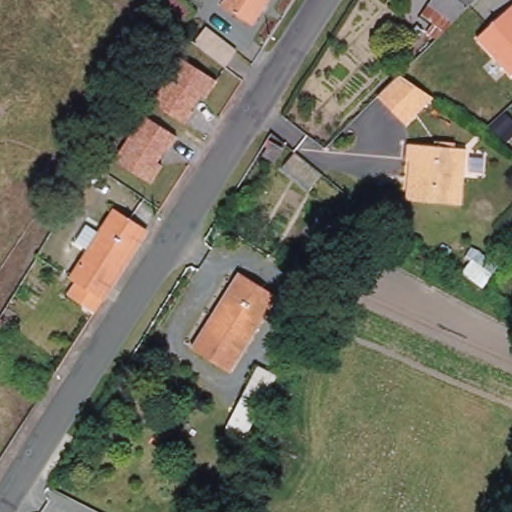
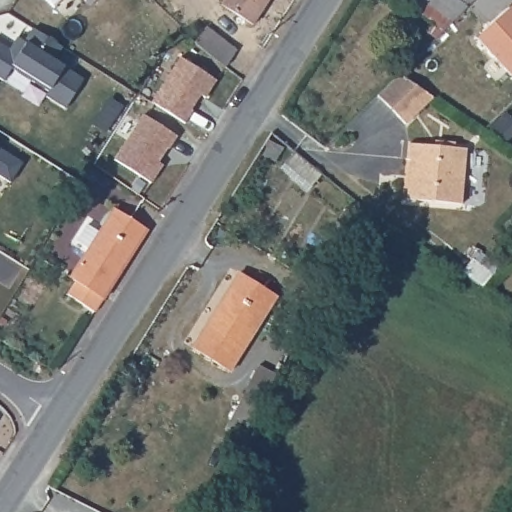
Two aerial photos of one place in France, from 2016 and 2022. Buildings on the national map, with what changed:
new [(44,0),(62,0),(53,9),(44,0)]
new [(83,0),(87,0),(85,2),(83,0)]
unchanged [(268,0),(252,25),(222,5),(225,0),(268,0)]
unchanged [(433,24),(420,15),(428,4),(431,0),(477,0),(454,23),(444,31),(435,41),(425,32),(433,24)]
unchanged [(482,40),(512,12),(512,72),(482,40)]
unchanged [(205,24),(235,48),(224,64),(192,39),(205,24)]
new [(0,44),(9,50),(17,39),(23,43),(33,29),(62,48),(54,60),(64,66),(82,80),(65,109),(45,97),(50,90),(12,66),(4,81),(0,79),(0,44)]
unchanged [(151,103),(179,59),(216,82),(205,100),(201,98),(183,125),(151,103)]
unchanged [(397,76),(432,99),(409,121),(380,93),(397,76)]
unchanged [(113,160),(143,117),(174,136),(158,161),(163,166),(150,184),(113,160)]
unchanged [(406,161),(407,146),(466,151),(461,207),(405,202),(406,185),(410,185),(412,162),(406,161)]
new [(10,183),(0,177),(0,150),(22,164),(10,183)]
unchanged [(79,284),(74,280),(92,254),(80,247),(91,230),(103,237),(118,215),(149,236),(107,302),(97,317),(69,299),(79,284)]
unchanged [(275,297),(226,372),(189,348),(238,273),(275,297)]
unchanged [(284,368),(272,393),(254,431),(235,421),(266,359),(284,368)]

